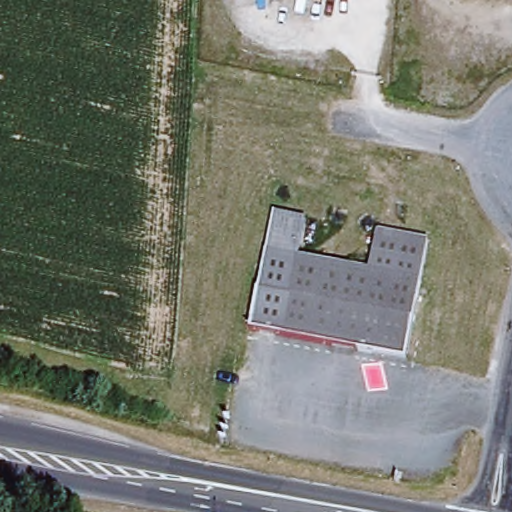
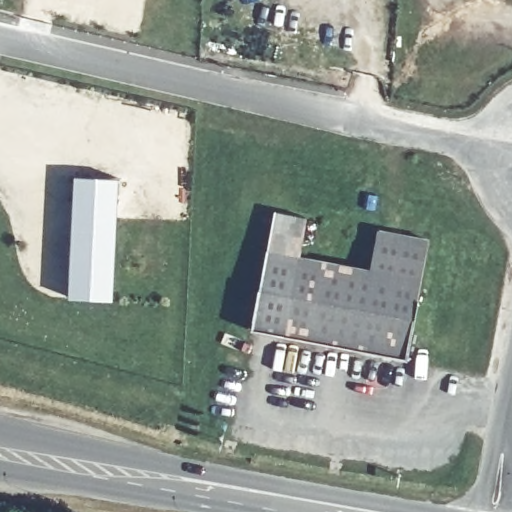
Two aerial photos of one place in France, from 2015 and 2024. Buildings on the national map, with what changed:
new [(110,300),(67,297),(73,176),(116,179),(110,300)]
unchanged [(256,330),(275,208),(320,216),(313,257),(365,265),(371,225),(429,235),(409,357),(256,330)]

